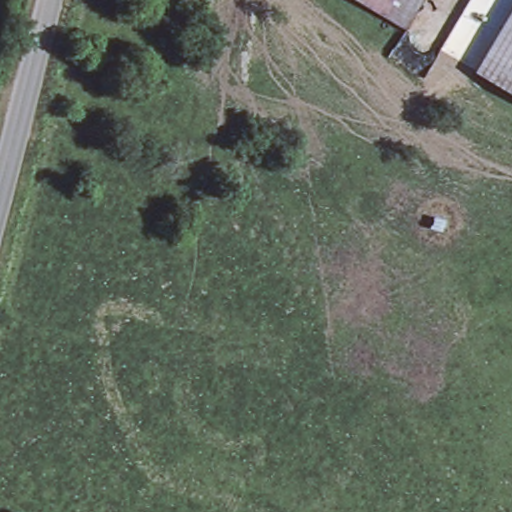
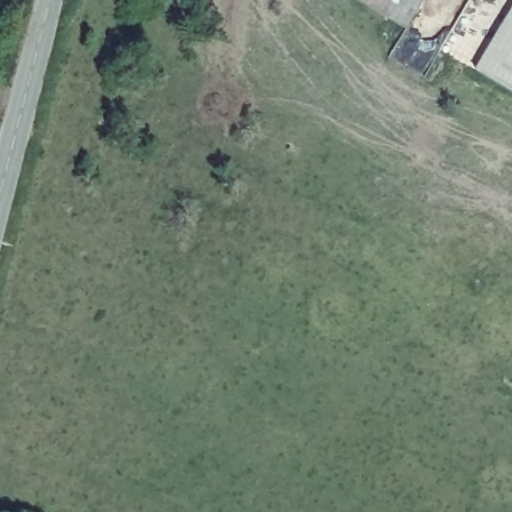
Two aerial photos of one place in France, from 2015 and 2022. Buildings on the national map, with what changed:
unchanged [(355,0),(424,0),(405,30),(355,0)]
unchanged [(512,7),(512,92),(475,71),(512,7)]

